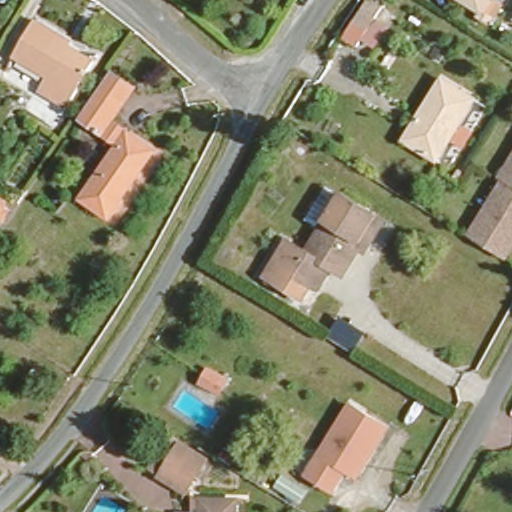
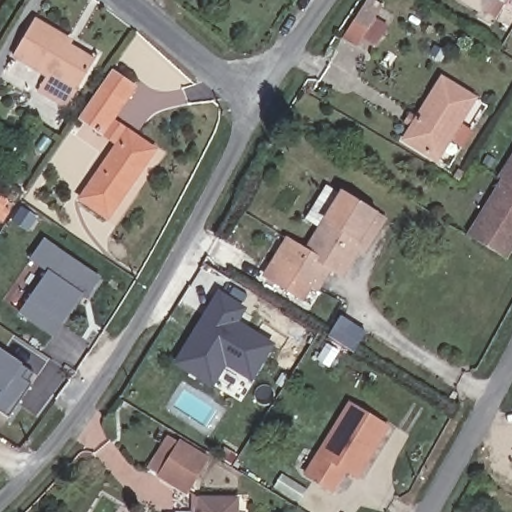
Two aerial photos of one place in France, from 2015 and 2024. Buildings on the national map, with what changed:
unchanged [(336,33),(357,0),(372,0),(376,2),(351,41),(336,33)]
unchanged [(490,14),(465,0),(500,0),(490,14)]
unchanged [(42,66),(34,60),(13,47),(35,14),(56,27),(101,56),(66,108),(30,85),(42,66)]
unchanged [(112,209),(85,192),(121,138),(80,110),(112,63),(122,69),(134,77),(123,93),(111,112),(156,143),(112,209)]
unchanged [(405,133),(443,71),(474,90),(435,152),(405,133)]
unchanged [(466,235),(498,181),(495,177),(512,150),(512,256),(510,261),(466,235)]
unchanged [(327,264),(313,285),(304,281),(295,295),(259,272),(283,237),(300,246),(340,187),(370,206),(383,214),(363,245),(355,241),(336,268),(327,264)]
new [(99,279),(86,297),(82,294),(52,335),(17,312),(27,299),(46,270),(30,259),(42,239),(99,279)]
new [(218,290),(246,309),(238,323),(274,345),(252,381),(227,366),(211,388),(172,364),(218,290)]
demolished [(190,361),(200,348),(216,360),(207,374),(190,361)]
new [(20,364),(27,369),(32,373),(27,382),(30,384),(9,416),(0,410),(0,394),(1,391),(0,390),(0,351),(20,364)]
unchanged [(341,464),(326,485),(300,466),(348,400),(381,424),(350,469),(341,464)]
unchanged [(142,463),(155,436),(167,444),(177,432),(209,447),(182,490),(142,463)]
unchanged [(223,512),(190,512),(190,508),(222,505),(223,512)]

